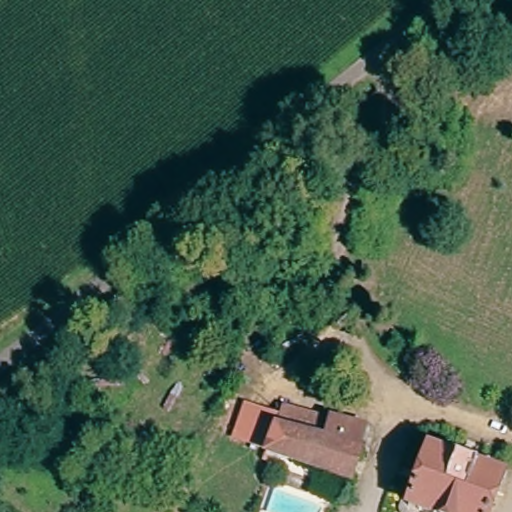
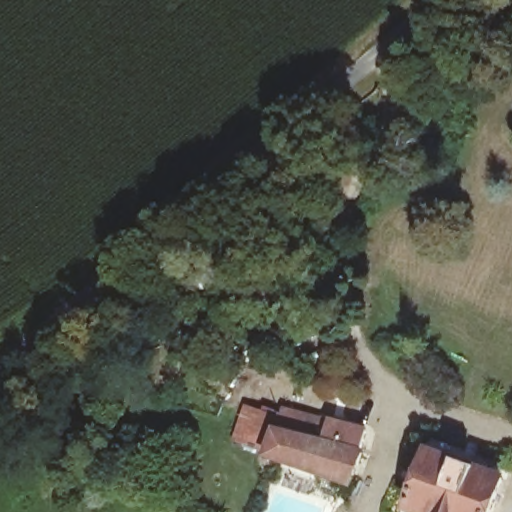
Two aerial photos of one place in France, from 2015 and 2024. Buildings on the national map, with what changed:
unchanged [(364,456),(352,488),(270,456),(272,451),(261,448),(250,444),(261,411),(282,418),(285,410),(366,434),(359,454),(364,456)]
unchanged [(428,512),(409,505),(431,449),(455,459),(457,455),(479,464),(478,467),(503,477),(491,512),(428,512)]

